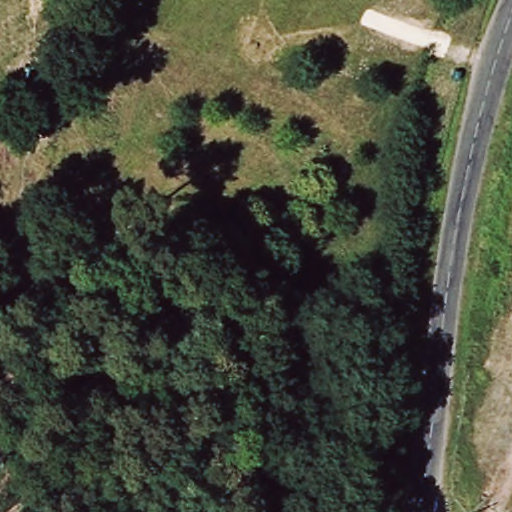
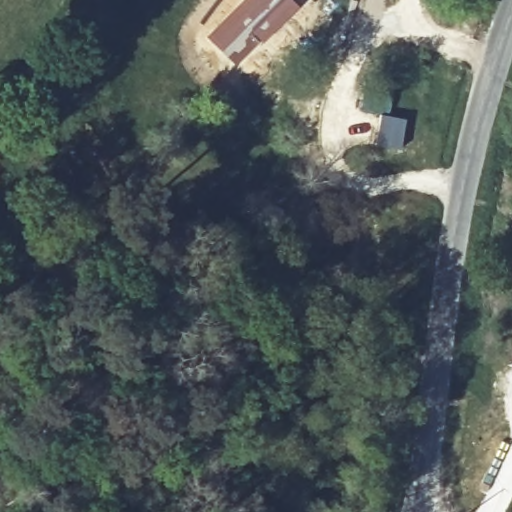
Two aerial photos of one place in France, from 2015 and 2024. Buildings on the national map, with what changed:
new [(304,0),(299,6),(236,66),(206,36),(242,0),(304,0)]

